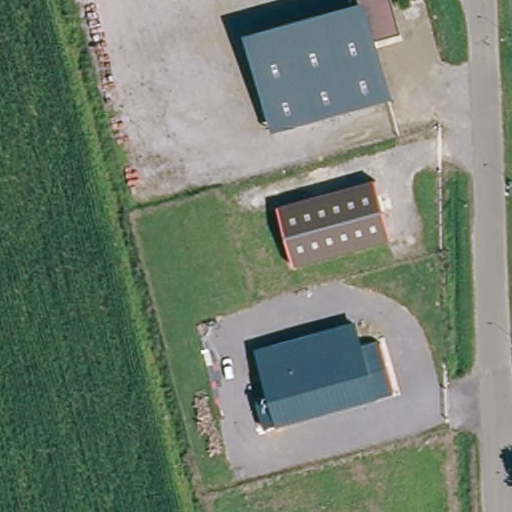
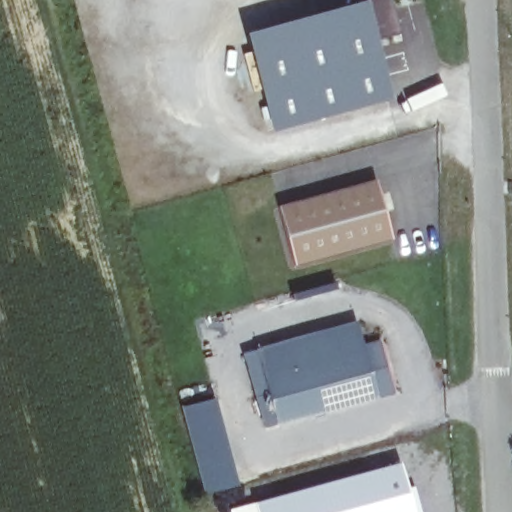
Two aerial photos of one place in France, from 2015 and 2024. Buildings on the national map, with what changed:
unchanged [(386,93),(277,123),(256,45),(364,16),(360,0),(393,0),(400,28),(389,31),(387,26),(378,28),(379,32),(370,34),(386,93)]
unchanged [(390,237),(292,263),(277,204),(375,179),(390,237)]
unchanged [(257,404),(269,399),(257,349),(355,320),(362,345),(378,341),(394,393),(265,428),(257,404)]
new [(215,398),(238,486),(202,494),(180,406),(215,398)]
new [(407,488),(414,486),(421,512),(229,512),(228,508),(400,460),(407,488)]

